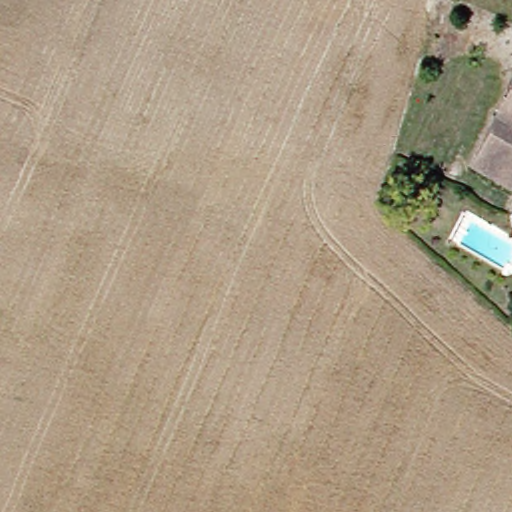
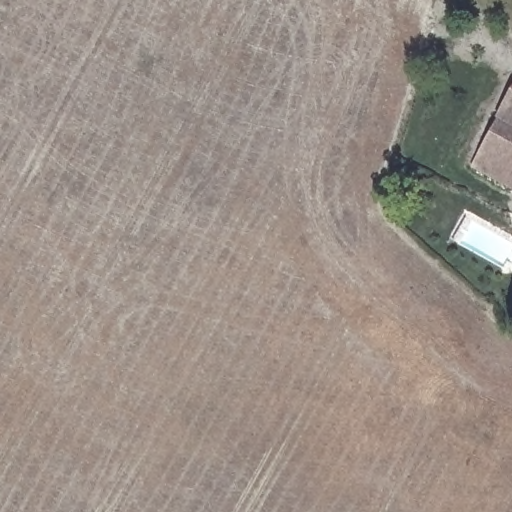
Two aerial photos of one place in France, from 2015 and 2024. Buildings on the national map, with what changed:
unchanged [(512,97),(512,156),(489,141),(512,97)]
unchanged [(512,184),(476,162),(489,141),(512,156),(512,184)]

